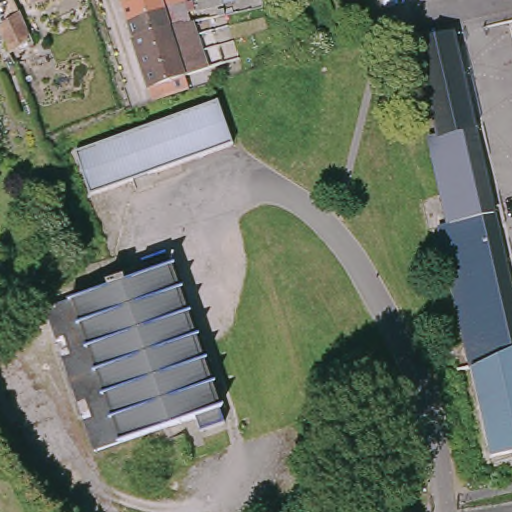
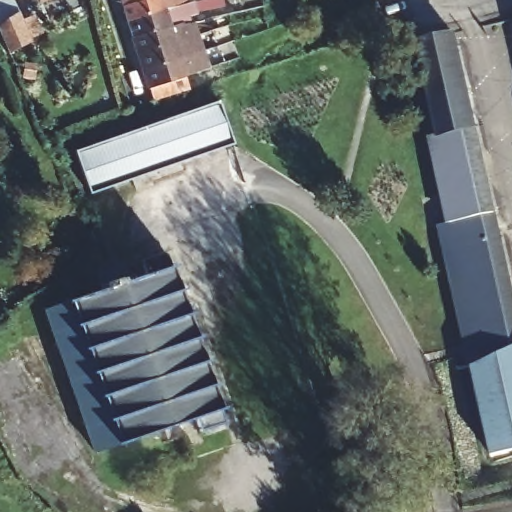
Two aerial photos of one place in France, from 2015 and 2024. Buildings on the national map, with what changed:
unchanged [(6,0),(12,15),(17,13),(22,28),(35,22),(40,35),(5,49),(0,41),(0,3),(6,0)]
unchanged [(137,38),(132,20),(126,4),(125,0),(168,0),(170,8),(192,1),(194,6),(172,14),(175,25),(187,21),(188,26),(177,30),(180,40),(191,38),(193,43),(182,46),(186,58),(197,54),(199,60),(188,64),(194,85),(189,86),(158,97),(155,87),(149,69),(142,53),(140,44),(137,38)]
unchanged [(512,264),(512,349),(477,365),(456,265),(446,268),(437,228),(457,222),(436,134),(444,133),(422,41),(459,34),(512,264)]
unchanged [(235,148),(91,197),(76,153),(219,104),(235,148)]
unchanged [(101,281),(130,271),(136,288),(152,283),(147,269),(170,261),(227,427),(203,434),(199,421),(95,451),(52,301),(101,281)]
unchanged [(477,365),(512,349),(512,447),(497,451),(477,365)]

